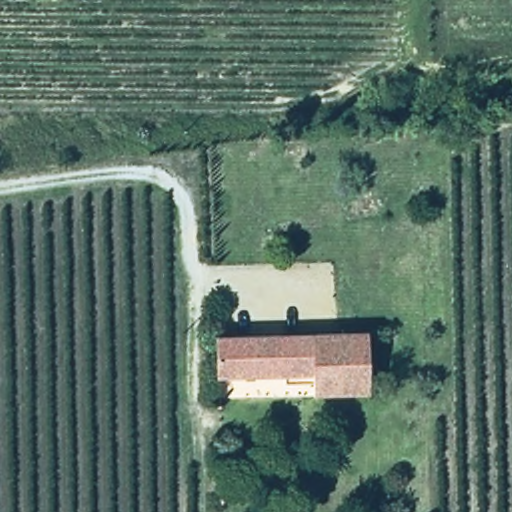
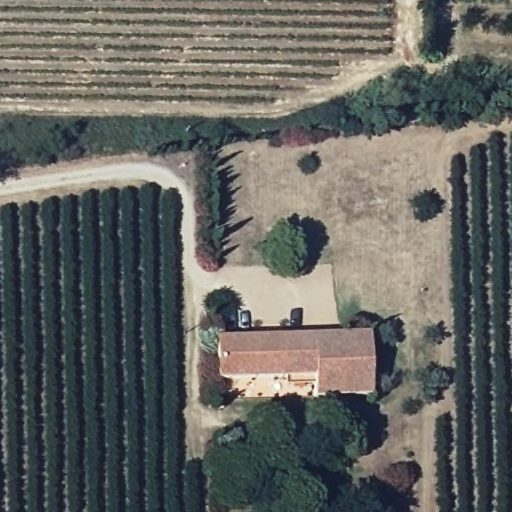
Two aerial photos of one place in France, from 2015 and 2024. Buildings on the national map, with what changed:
unchanged [(368,399),(306,400),(305,378),(210,380),(209,338),(365,335),(368,399)]

